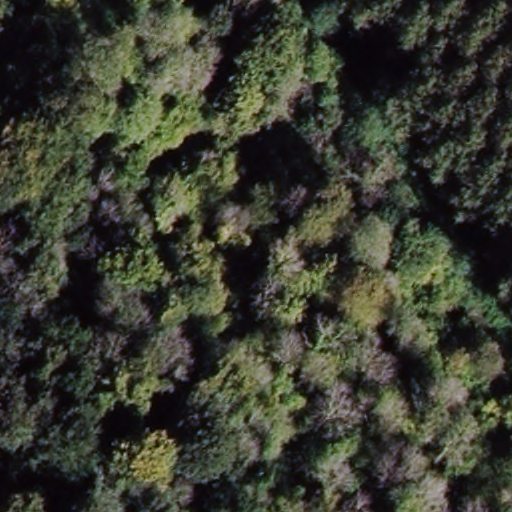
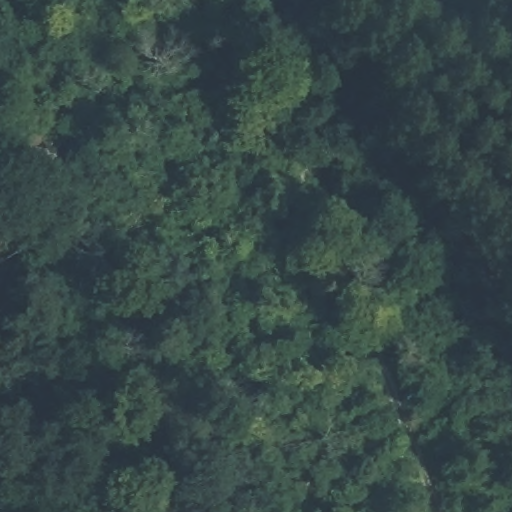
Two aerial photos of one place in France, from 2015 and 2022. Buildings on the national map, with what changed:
[]

